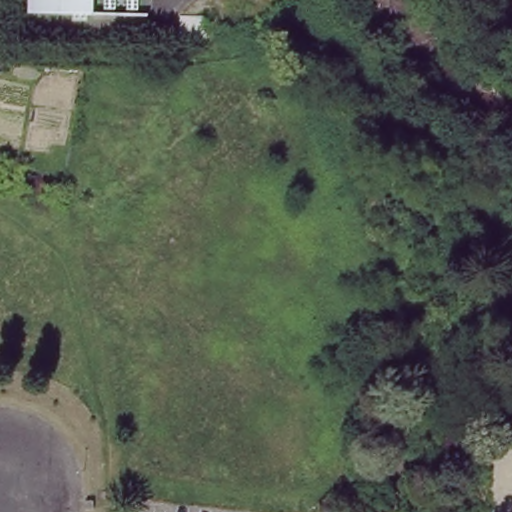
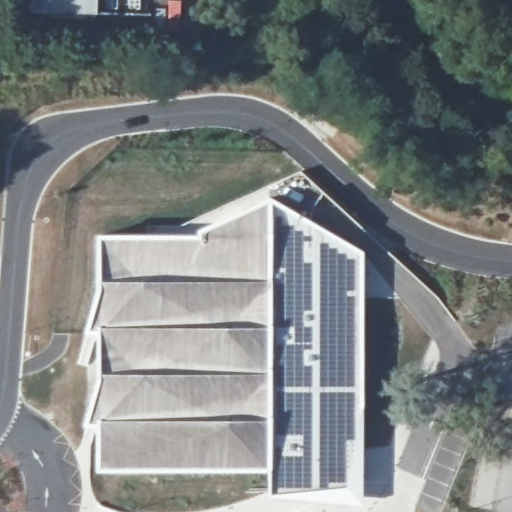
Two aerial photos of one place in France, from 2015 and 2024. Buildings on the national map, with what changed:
unchanged [(101,0),(100,15),(33,15),(33,0),(101,0)]
unchanged [(151,0),(152,15),(100,15),(101,0),(151,0)]
new [(199,238),(199,232),(269,200),(360,253),(362,502),(269,493),(267,468),(97,470),(97,426),(84,425),(97,375),(98,333),(85,331),(99,285),(97,235),(199,238)]

